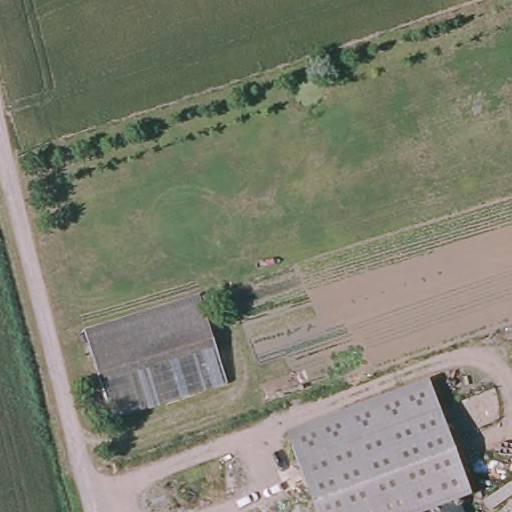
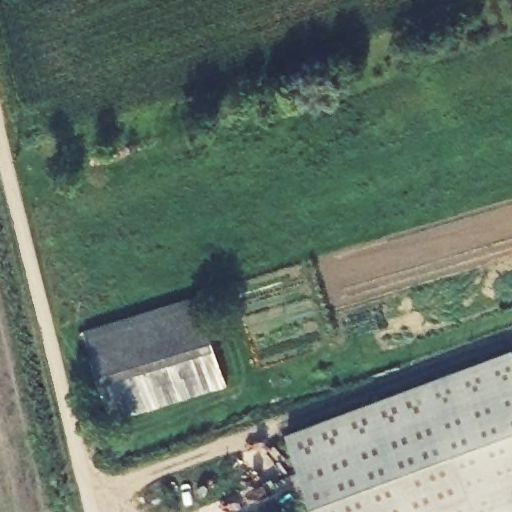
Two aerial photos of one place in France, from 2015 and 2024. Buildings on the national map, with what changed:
unchanged [(107,425),(79,332),(203,299),(233,391),(107,425)]
new [(445,512),(444,506),(474,495),(430,378),(512,348),(512,512),(445,512)]
unchanged [(430,378),(474,495),(427,512),(317,512),(287,431),(430,378)]

